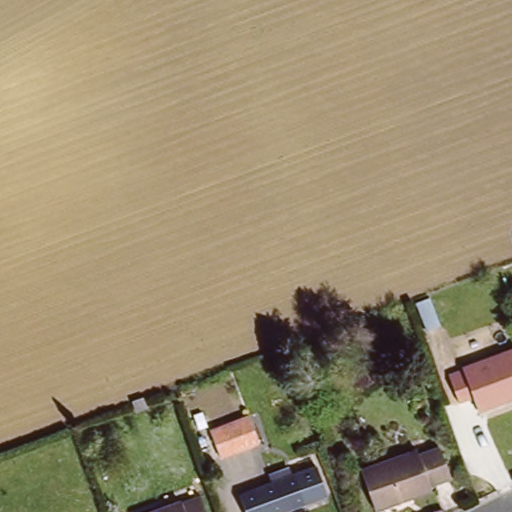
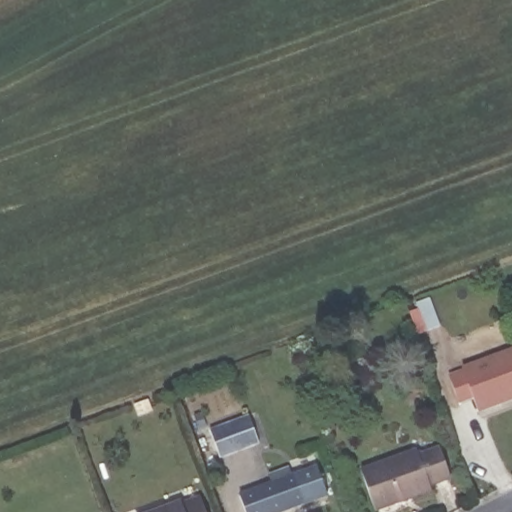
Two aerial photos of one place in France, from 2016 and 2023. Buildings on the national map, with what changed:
unchanged [(512,351),(512,393),(470,409),(466,398),(453,403),(443,376),(512,351)]
unchanged [(208,433),(247,421),(256,447),(217,457),(208,433)]
unchanged [(362,470),(415,450),(417,456),(438,448),(449,477),(428,484),(431,492),(377,512),(362,470)]
unchanged [(327,496),(282,512),(246,512),(240,493),(265,483),(263,479),(314,461),(327,496)]
unchanged [(197,500),(202,512),(163,512),(197,500)]

